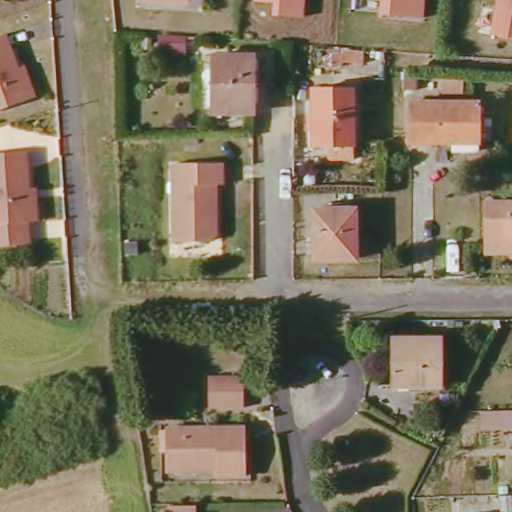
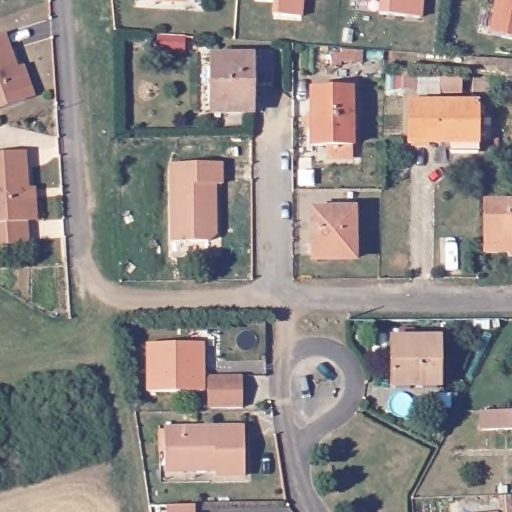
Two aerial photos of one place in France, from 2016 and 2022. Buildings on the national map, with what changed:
unchanged [(140,0),(185,0),(185,7),(140,4),(140,0)]
new [(297,16),(269,14),(270,1),(263,0),(298,0),(297,16)]
unchanged [(377,0),(422,0),(419,21),(375,15),(377,0)]
unchanged [(512,40),(486,36),(493,0),(512,0),(512,40)]
unchanged [(32,96),(25,99),(24,99),(0,107),(0,33),(1,33),(13,67),(21,65),(32,96)]
unchanged [(220,55),(259,53),(260,112),(220,113),(220,55)]
unchanged [(331,159),(331,145),(317,145),(317,88),(356,87),(357,145),(355,145),(355,159),(331,159)]
unchanged [(455,147),(455,140),(412,139),(413,98),(482,99),(482,134),(481,148),(455,147)]
unchanged [(34,224),(26,224),(24,224),(25,245),(0,246),(0,156),(22,156),(24,191),(32,191),(34,224)]
unchanged [(172,163),(222,163),(222,183),(215,184),(216,214),(210,215),(210,220),(215,223),(216,234),(212,242),(174,243),(172,163)]
unchanged [(512,203),(512,251),(487,252),(487,203),(512,203)]
unchanged [(312,208),(354,209),(354,257),(312,258),(312,208)]
unchanged [(397,339),(444,338),(445,387),(397,388),(397,339)]
new [(205,342),(207,390),(152,392),(152,343),(205,342)]
unchanged [(210,379),(244,379),(244,410),(210,410),(210,379)]
unchanged [(512,416),(512,435),(485,436),(485,417),(512,416)]
unchanged [(170,432),(249,432),(250,477),(220,478),(220,473),(171,474),(170,432)]
unchanged [(198,510),(198,512),(172,512),(172,510),(198,510)]

